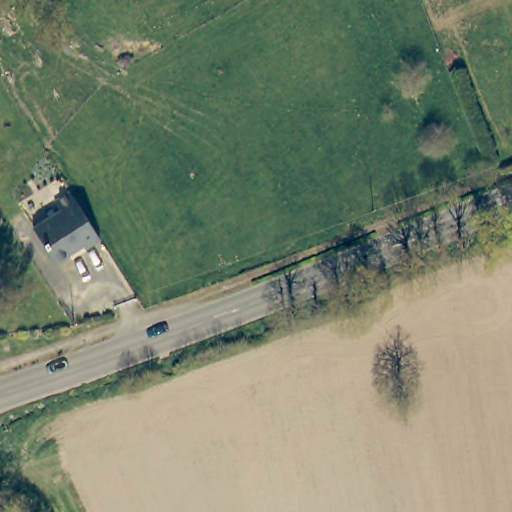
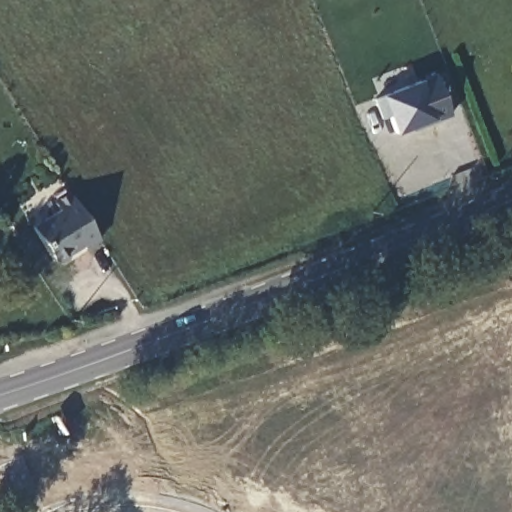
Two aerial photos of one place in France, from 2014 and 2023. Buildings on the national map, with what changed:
new [(430,124),(397,138),(380,98),(420,81),(437,71),(456,116),(430,124)]
unchanged [(89,256),(85,251),(74,258),(73,264),(63,269),(57,269),(36,234),(64,218),(58,209),(74,199),(104,247),(89,256)]

